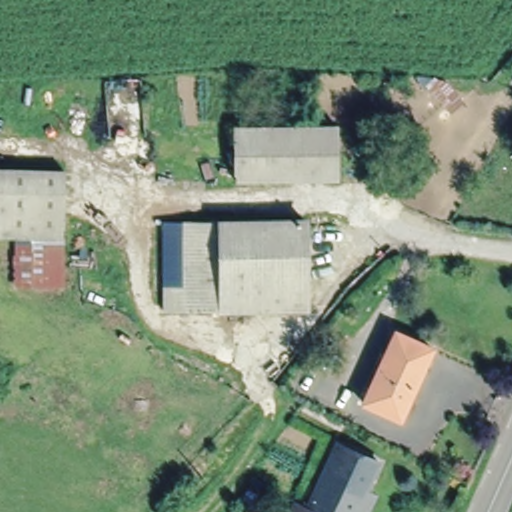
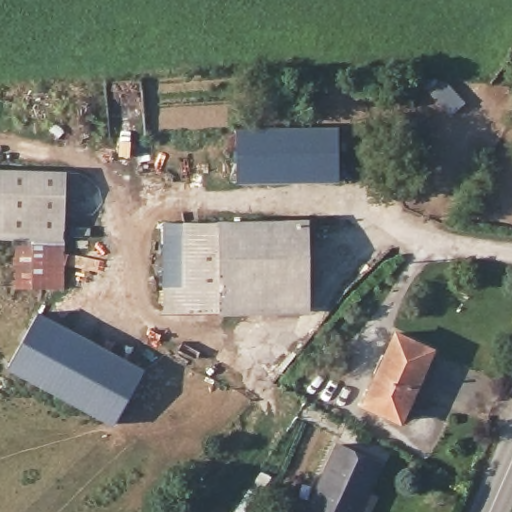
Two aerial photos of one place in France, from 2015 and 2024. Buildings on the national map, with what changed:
unchanged [(334,176),(237,176),(236,125),(335,124),(334,176)]
unchanged [(62,165),(62,234),(0,234),(0,165),(62,165)]
new [(182,222),(180,290),(163,290),(162,220),(182,222)]
unchanged [(163,314),(163,290),(180,290),(182,222),(220,220),(222,313),(163,314)]
unchanged [(306,313),(222,313),(220,220),(305,220),(305,226),(306,313)]
unchanged [(12,239),(60,239),(60,285),(11,284),(12,239)]
new [(143,365),(112,423),(6,365),(38,309),(143,365)]
unchanged [(395,418),(360,402),(392,329),(429,345),(395,418)]
unchanged [(289,512),(292,505),(307,511),(336,446),(377,463),(364,492),(372,496),(365,512),(289,512)]
unchanged [(234,512),(233,511),(248,486),(260,492),(247,512),(234,512)]

